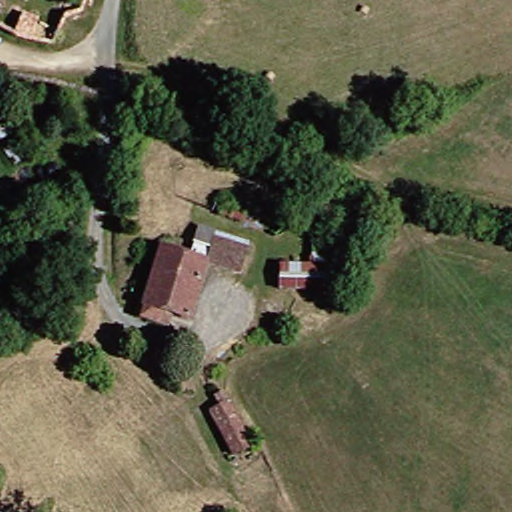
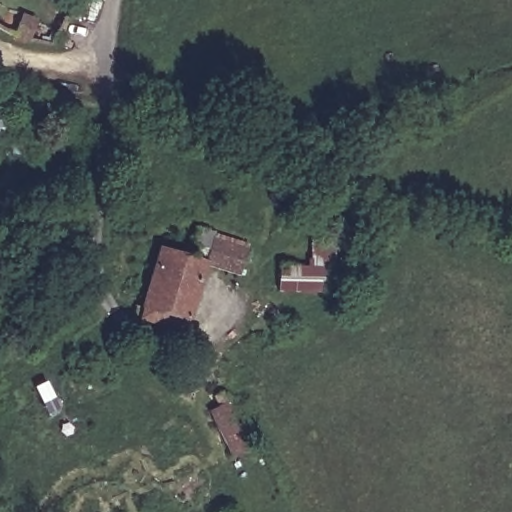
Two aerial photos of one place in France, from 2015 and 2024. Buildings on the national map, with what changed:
unchanged [(0,0),(9,0),(0,25),(0,0)]
unchanged [(140,140),(159,145),(152,176),(137,171),(140,140)]
unchanged [(133,322),(152,250),(185,260),(193,231),(244,245),(233,277),(199,267),(178,335),(133,322)]
unchanged [(272,295),(274,267),(305,268),(305,241),(329,242),(329,270),(322,270),(322,296),(272,295)]
unchanged [(222,458),(206,416),(224,408),(242,452),(222,458)]

